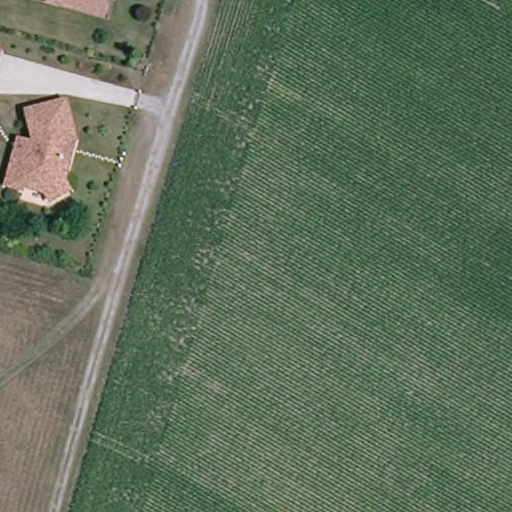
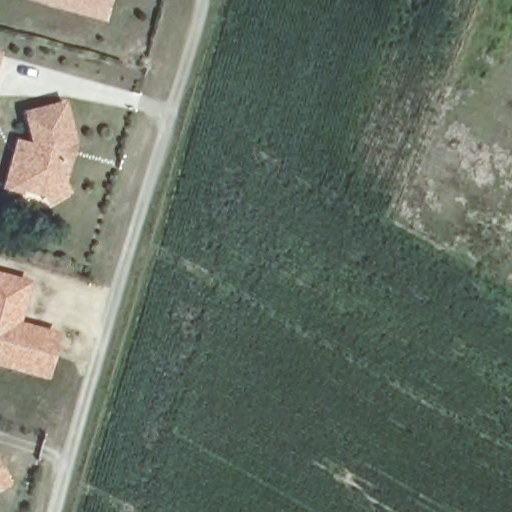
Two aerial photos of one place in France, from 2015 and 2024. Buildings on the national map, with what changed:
unchanged [(100,10),(54,1),(53,6),(20,0),(111,0),(109,12),(100,10)]
unchanged [(53,202),(48,193),(26,187),(25,191),(9,186),(18,155),(22,140),(31,143),(32,140),(26,111),(64,103),(72,142),(69,164),(66,184),(71,192),(53,202)]
new [(24,321),(64,330),(50,380),(0,366),(0,270),(36,279),(24,321)]
new [(0,474),(0,460),(6,471),(0,474)]

